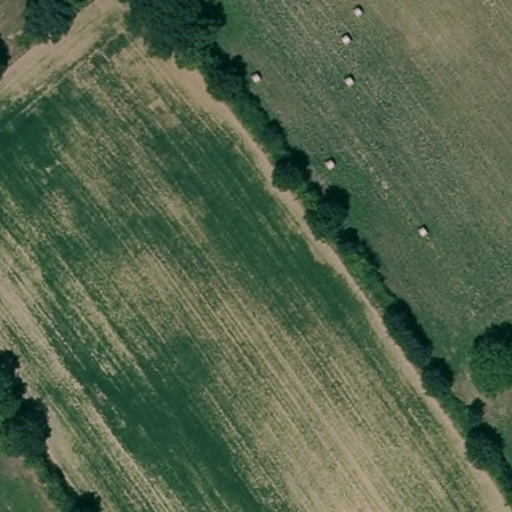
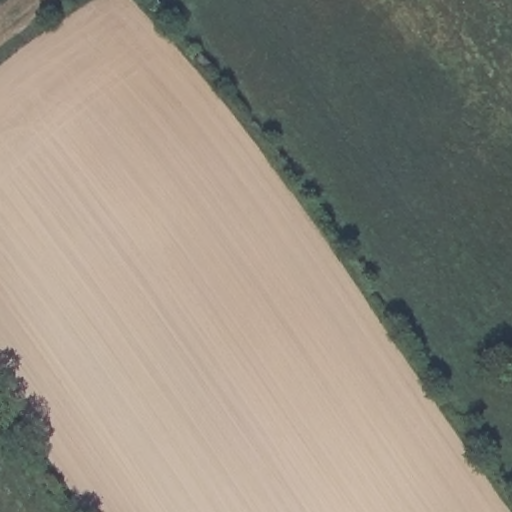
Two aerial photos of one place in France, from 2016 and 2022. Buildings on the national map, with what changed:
[]

